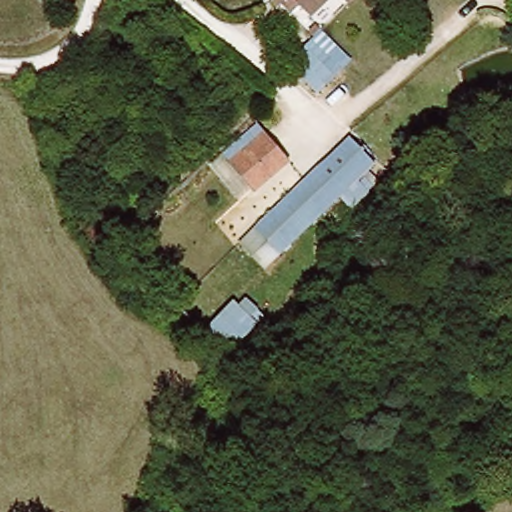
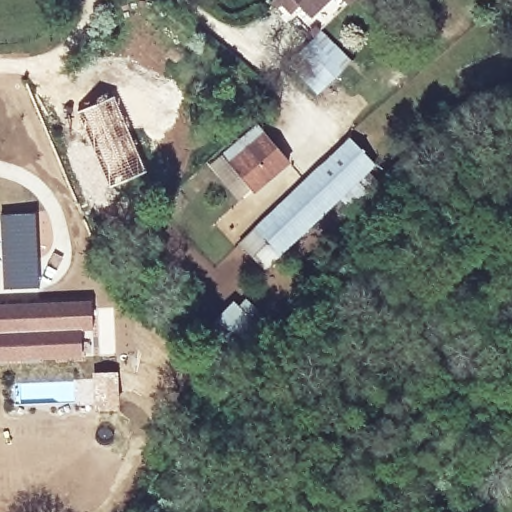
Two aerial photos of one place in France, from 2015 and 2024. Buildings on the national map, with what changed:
unchanged [(314,19),(301,7),(293,14),(278,1),(278,0),(334,0),(314,19)]
unchanged [(352,6),(345,0),(357,0),(352,6)]
unchanged [(320,94),(291,63),(325,32),(355,61),(320,94)]
new [(115,95),(146,171),(109,187),(77,111),(115,95)]
unchanged [(221,152),(258,122),(293,162),(255,193),(221,152)]
unchanged [(260,275),(232,246),(345,138),(371,167),(260,275)]
new [(36,211),(40,288),(3,290),(0,224),(0,213),(36,211)]
new [(92,299),(92,330),(83,330),(83,357),(10,361),(0,361),(0,303),(92,299)]
new [(113,307),(116,353),(98,355),(96,308),(113,307)]
unchanged [(214,316),(230,328),(235,320),(251,329),(240,351),(204,329),(214,316)]
new [(118,370),(120,408),(93,409),(92,371),(118,370)]

